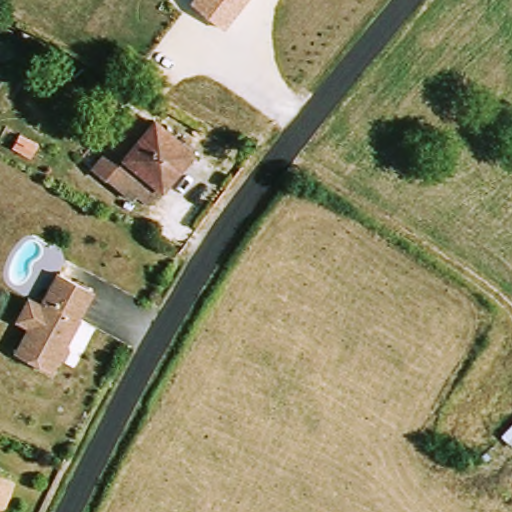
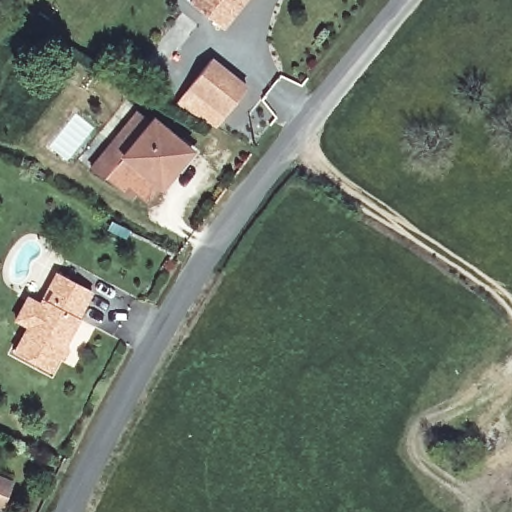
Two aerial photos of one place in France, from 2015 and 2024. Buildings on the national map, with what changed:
unchanged [(251,0),(228,29),(190,0),(191,0),(251,0)]
new [(212,55),(248,86),(213,129),(175,101),(212,55)]
unchanged [(187,137),(142,205),(98,180),(145,110),(187,137)]
unchanged [(97,295),(84,320),(85,325),(72,344),(73,355),(67,356),(56,377),(19,358),(32,331),(20,325),(33,302),(45,308),(61,277),(97,295)]
unchanged [(497,435),(512,420),(512,449),(497,435)]
unchanged [(7,512),(3,512),(0,511),(0,473),(19,480),(7,512)]

